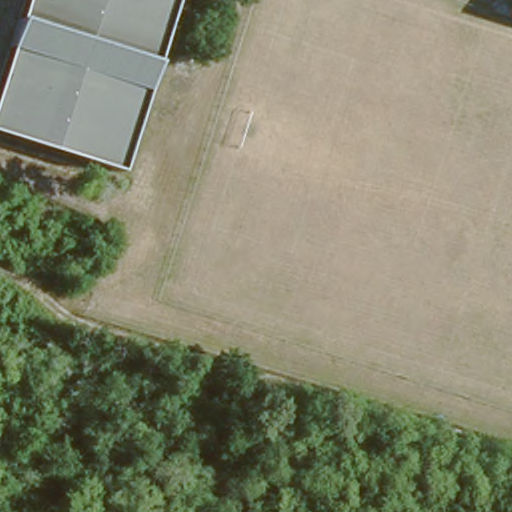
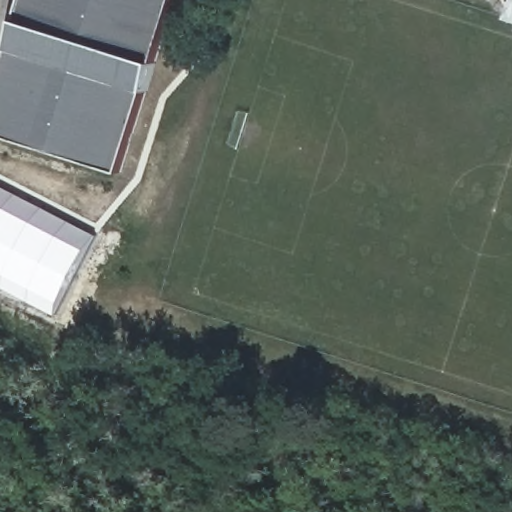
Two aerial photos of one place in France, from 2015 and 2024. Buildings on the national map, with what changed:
unchanged [(0,133),(0,93),(31,0),(182,0),(124,174),(0,133)]
unchanged [(502,0),(512,0),(512,25),(495,19),(502,0)]
new [(0,287),(0,187),(94,235),(54,314),(0,287)]

